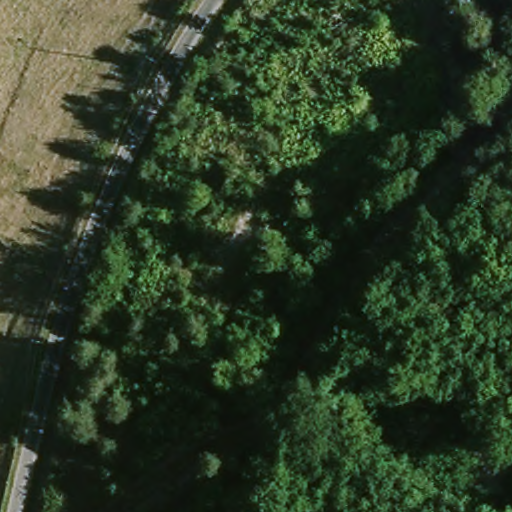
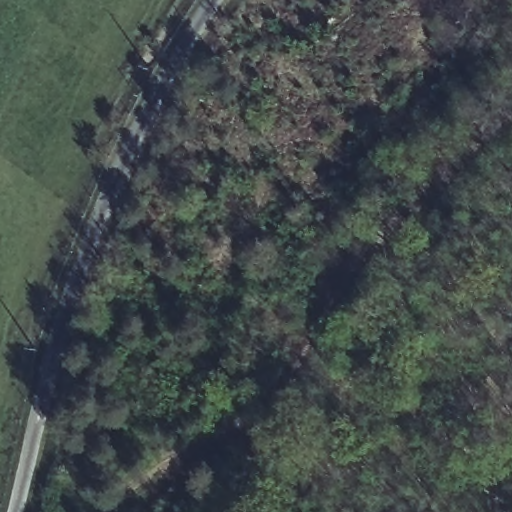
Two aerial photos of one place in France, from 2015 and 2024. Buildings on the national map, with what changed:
[]

